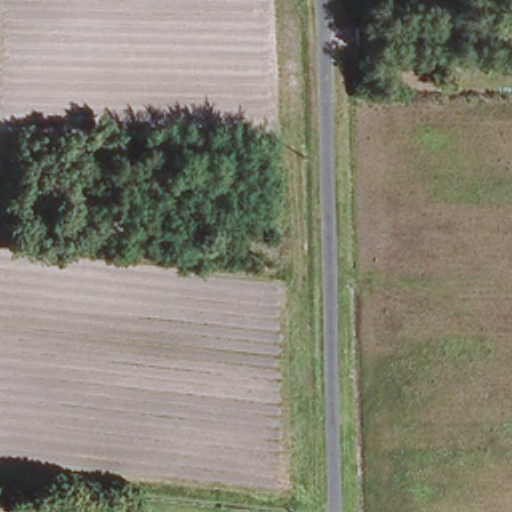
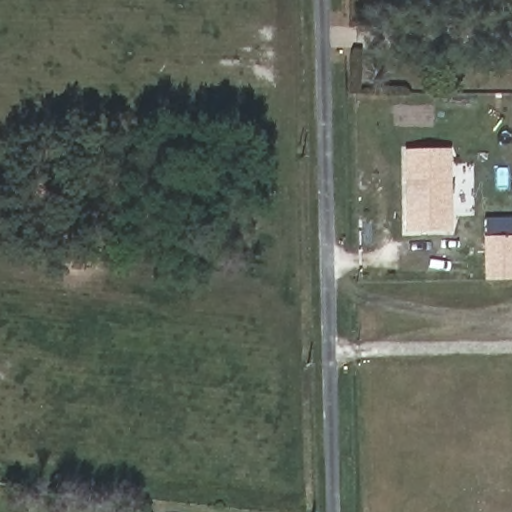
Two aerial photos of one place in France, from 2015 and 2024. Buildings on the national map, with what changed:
new [(448,147),(450,230),(407,232),(405,149),(448,147)]
unchanged [(211,208),(196,209),(194,195),(211,193),(211,208)]
new [(484,237),(512,236),(512,280),(485,281),(484,237)]

